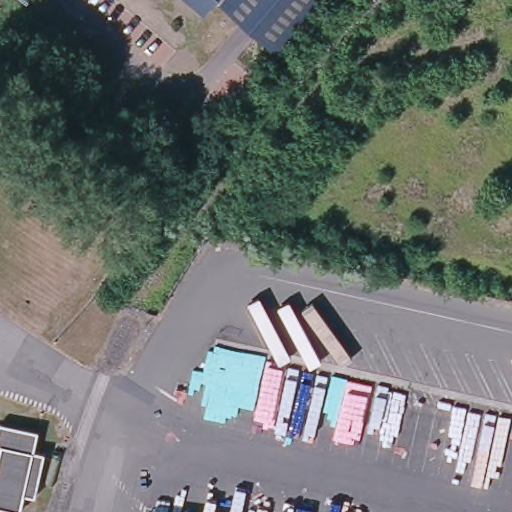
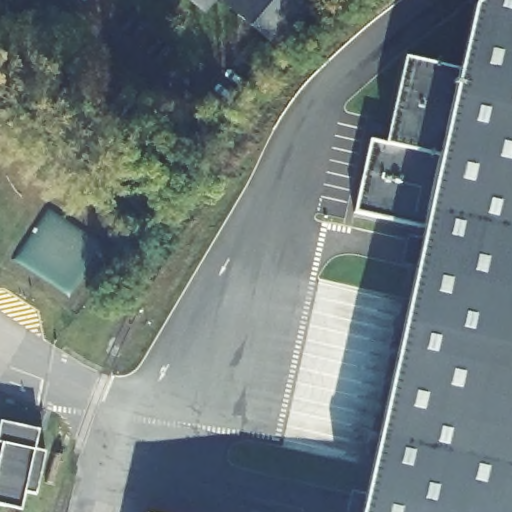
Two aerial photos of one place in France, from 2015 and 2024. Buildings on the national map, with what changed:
unchanged [(204,10),(191,0),(215,0),(205,12),(204,10)]
unchanged [(222,0),(225,0),(224,1),(222,0)]
unchanged [(224,1),(225,0),(318,0),(279,46),(224,1)]
new [(426,226),(355,212),(370,139),(386,143),(405,58),(459,70),(473,5),(478,0),(512,0),(512,512),(361,512),(426,226)]
unchanged [(26,504),(24,512),(0,512),(0,463),(2,455),(0,455),(0,436),(1,432),(41,442),(36,461),(47,464),(38,502),(37,507),(26,504)]

